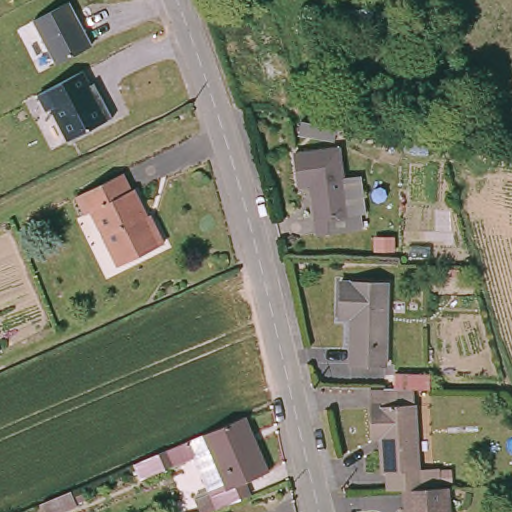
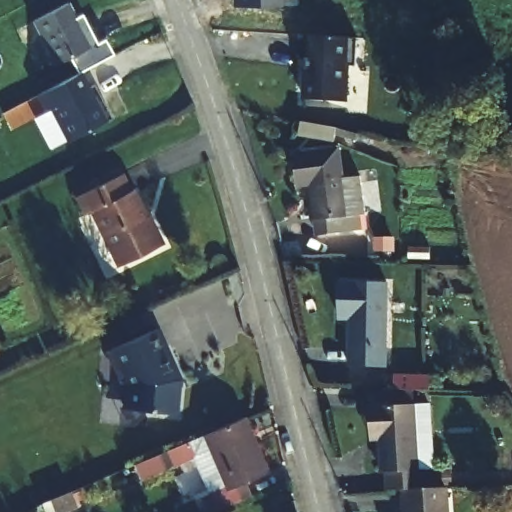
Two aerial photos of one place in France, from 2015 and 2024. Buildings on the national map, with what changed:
new [(233,5),(233,0),(282,0),(282,5),(233,5)]
unchanged [(70,2),(91,45),(55,65),(32,20),(70,2)]
new [(83,71),(79,73),(71,56),(91,45),(77,17),(83,15),(98,45),(106,40),(114,55),(83,71)]
new [(306,57),(299,57),(300,34),(352,37),(349,101),(303,99),(306,57)]
unchanged [(113,119),(68,141),(52,110),(47,112),(38,95),(83,71),(90,85),(94,82),(113,119)]
unchanged [(337,132),(334,146),(298,140),(301,126),(337,132)]
unchanged [(366,219),(360,220),(362,234),(316,240),(311,200),(315,199),(314,190),(298,191),(295,159),(340,153),(344,183),(361,180),(366,219)]
unchanged [(150,225),(153,224),(164,245),(119,266),(92,211),(86,215),(77,195),(121,174),(130,191),(133,190),(150,225)]
unchanged [(351,317),(339,317),(341,282),(387,283),(386,365),(350,364),(351,317)]
new [(157,328),(165,346),(174,366),(171,367),(176,377),(175,385),(180,386),(177,413),(126,408),(128,386),(125,380),(120,383),(106,351),(155,330),(157,328)]
unchanged [(394,380),(430,380),(429,395),(394,394),(394,380)]
unchanged [(383,477),(381,442),(371,442),(371,433),(369,411),(371,411),(371,405),(415,402),(415,409),(419,475),(437,473),(438,492),(405,495),(388,495),(388,476),(383,477)]
unchanged [(244,483),(250,496),(210,512),(200,512),(195,499),(210,493),(194,456),(142,479),(135,463),(245,416),(269,472),(244,483)]
unchanged [(63,512),(45,512),(42,503),(71,491),(77,506),(63,512)]
unchanged [(438,492),(446,492),(447,512),(405,512),(405,495),(438,492)]

